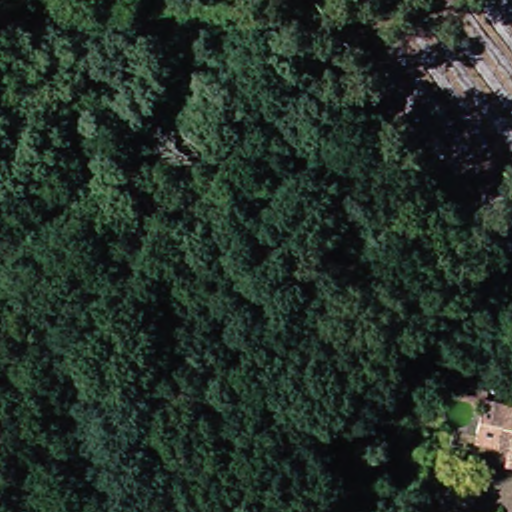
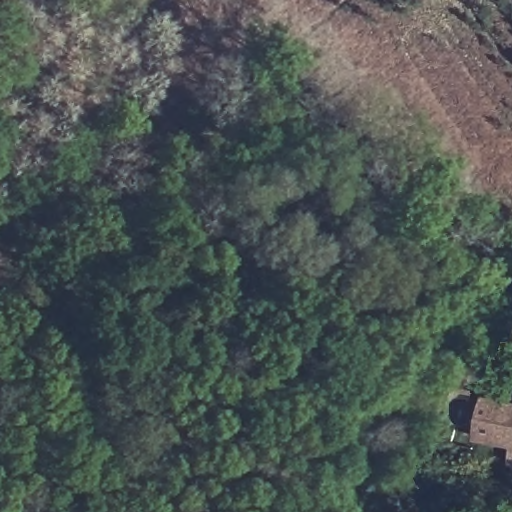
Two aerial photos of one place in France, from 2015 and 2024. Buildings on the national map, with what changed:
unchanged [(510,459),(511,440),(481,434),(486,397),(512,401),(512,459),(510,459)]

